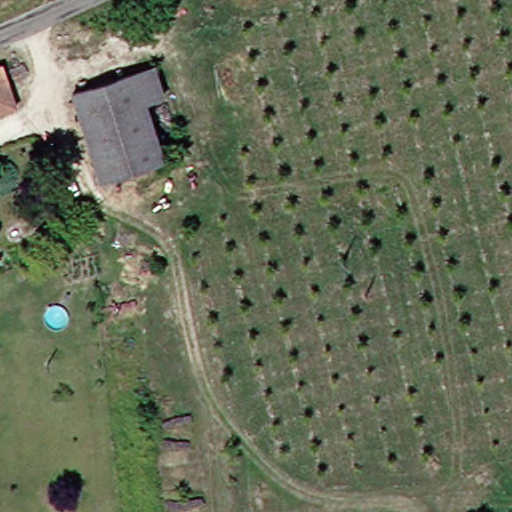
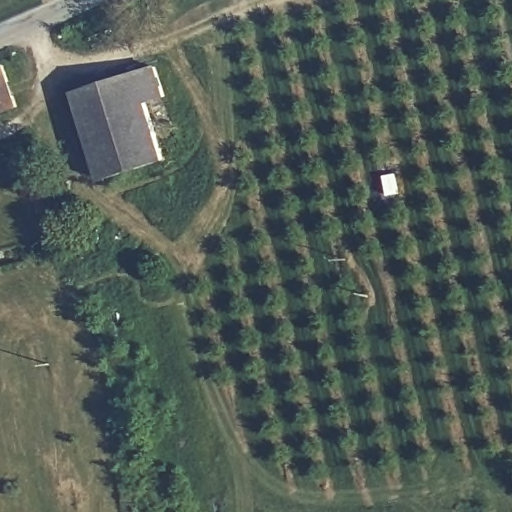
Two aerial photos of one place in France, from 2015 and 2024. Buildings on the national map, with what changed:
unchanged [(3,64),(20,112),(0,119),(0,66),(3,64)]
unchanged [(173,96),(148,104),(166,159),(104,179),(77,99),(164,69),(173,96)]

